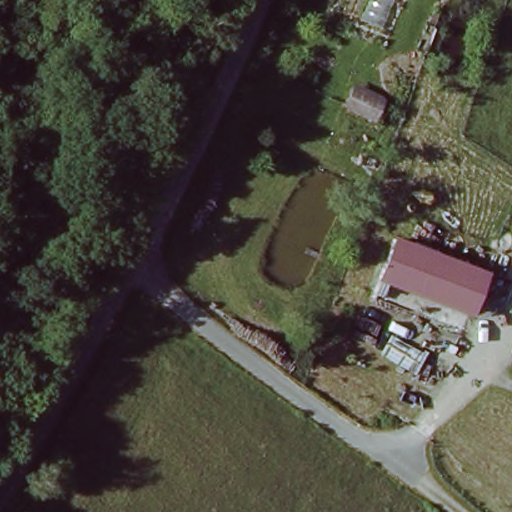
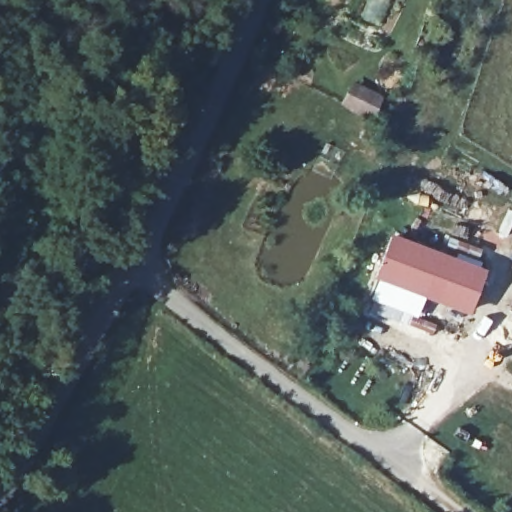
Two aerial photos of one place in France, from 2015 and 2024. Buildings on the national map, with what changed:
unchanged [(370,125),(343,116),(348,97),(377,106),(370,125)]
unchanged [(467,314),(375,281),(387,240),(480,271),(467,314)]

